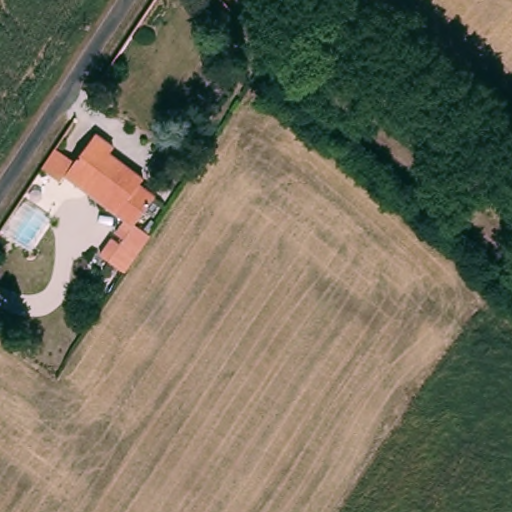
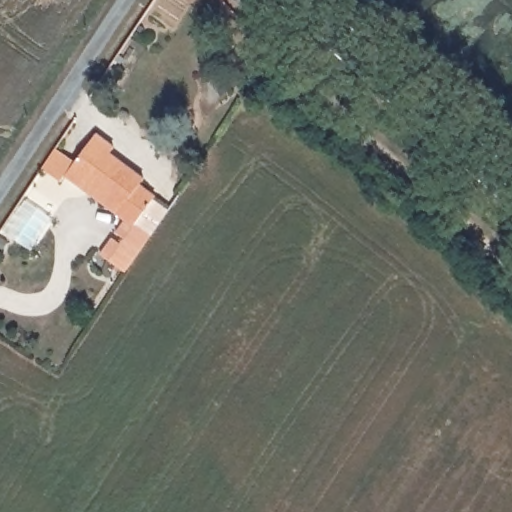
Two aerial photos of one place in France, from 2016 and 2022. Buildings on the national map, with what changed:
unchanged [(97,253),(124,222),(67,171),(62,178),(43,162),(55,143),(76,161),(100,134),(119,150),(113,156),(144,185),(141,188),(154,200),(134,221),(149,234),(121,275),(97,253)]

